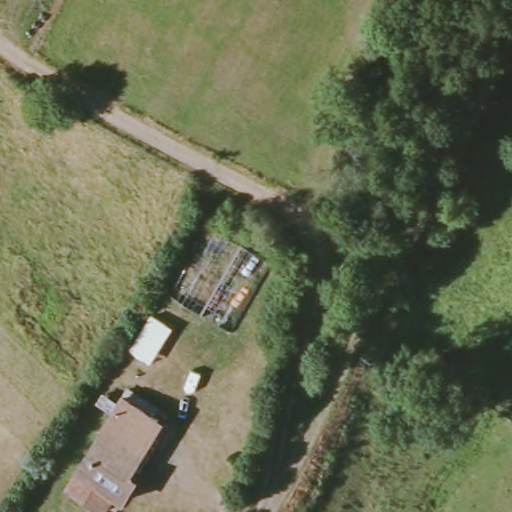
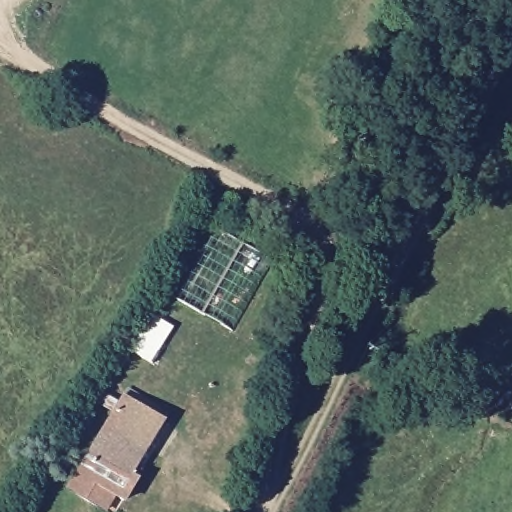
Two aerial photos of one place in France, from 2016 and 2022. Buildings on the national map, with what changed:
unchanged [(142,365),(117,349),(145,307),(170,326),(142,365)]
unchanged [(62,484),(118,392),(153,415),(120,469),(130,475),(118,496),(108,490),(98,506),(62,484)]

